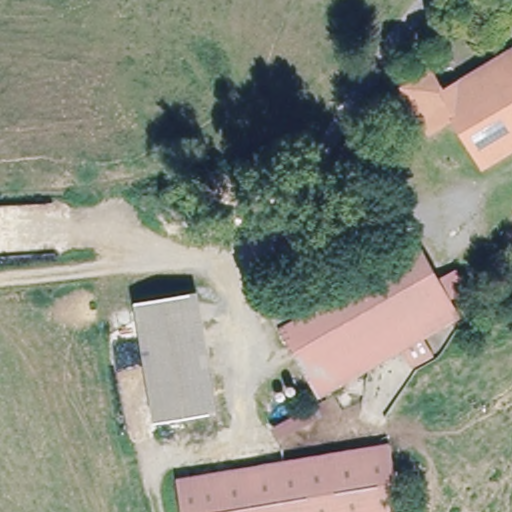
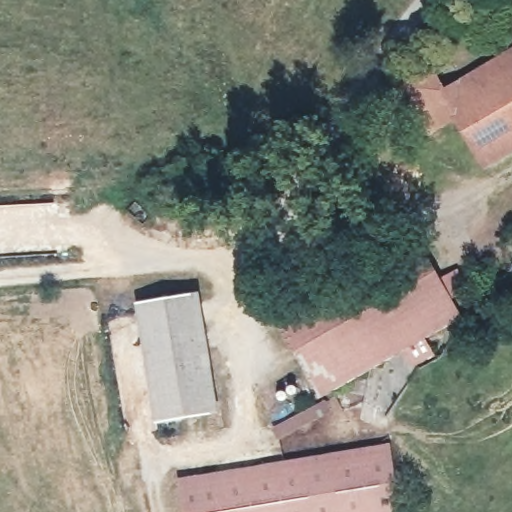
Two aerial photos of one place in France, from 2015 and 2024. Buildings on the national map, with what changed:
unchanged [(447,92),(512,55),(512,152),(489,165),(458,117),(433,133),(406,88),(431,70),(447,92)]
unchanged [(443,288),(456,281),(461,290),(469,284),(475,298),(453,310),(458,321),(427,337),(436,358),(415,368),(405,347),(313,391),(276,308),(283,304),(299,295),(304,305),(307,310),(317,305),(410,261),(426,253),(443,288)]
unchanged [(147,297),(201,288),(205,311),(223,409),(168,420),(151,317),(147,297)]
unchanged [(395,442),(408,512),(349,512),(338,451),(395,442)]
unchanged [(179,479),(338,451),(349,512),(184,512),(179,479)]

